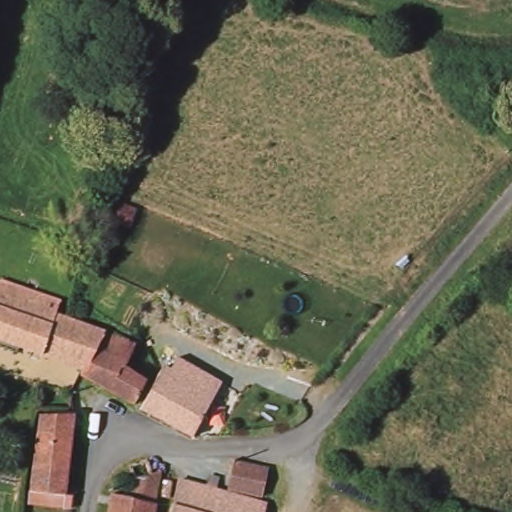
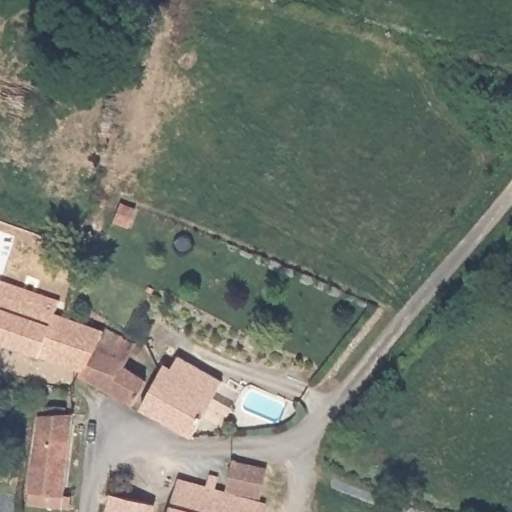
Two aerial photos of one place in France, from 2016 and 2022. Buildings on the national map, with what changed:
unchanged [(512,88),(512,107),(508,121),(470,108),(480,78),(512,88)]
unchanged [(83,370),(55,360),(47,358),(26,350),(0,342),(0,286),(2,281),(63,301),(60,314),(79,323),(103,334),(83,370)]
unchanged [(105,331),(139,348),(129,366),(147,376),(134,403),(81,375),(83,370),(103,334),(105,331)]
unchanged [(167,380),(171,375),(181,360),(227,384),(217,400),(197,438),(142,408),(160,376),(167,380)]
unchanged [(35,496),(36,489),(36,480),(37,457),(37,455),(37,449),(37,448),(37,440),(38,417),(37,417),(36,416),(40,412),(41,411),(44,411),(45,410),(48,410),(62,408),(71,406),(74,406),(71,483),(76,483),(75,500),(35,498),(35,496)]
unchanged [(267,466),(262,495),(246,491),(241,490),(235,488),(231,487),(229,487),(230,483),(235,458),(267,466)]
unchanged [(118,493),(135,495),(136,492),(140,475),(140,474),(134,466),(151,462),(154,462),(165,476),(156,512),(113,512),(118,493)]
unchanged [(204,484),(207,486),(211,474),(220,477),(216,489),(266,506),(263,512),(169,512),(181,477),(204,484)]

